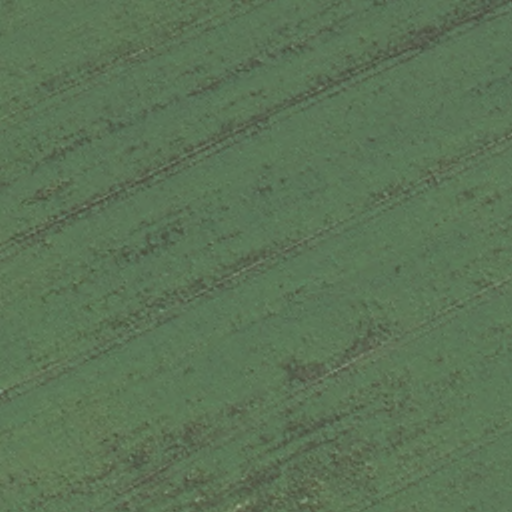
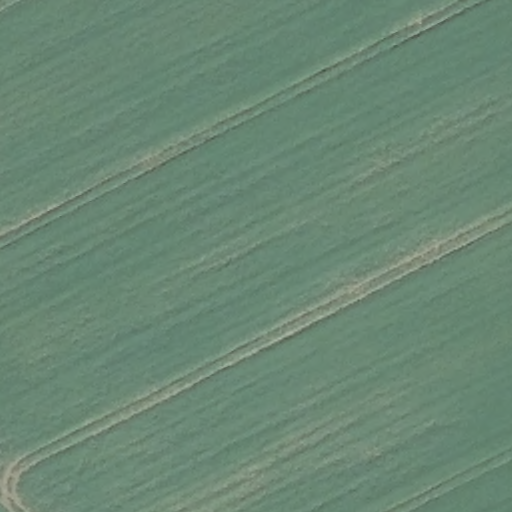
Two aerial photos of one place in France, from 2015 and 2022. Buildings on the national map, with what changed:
[]

